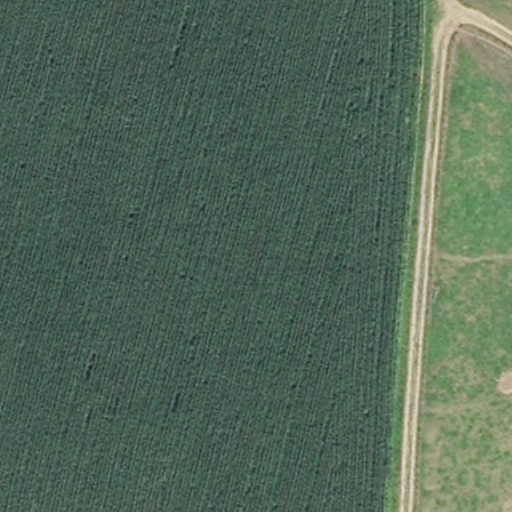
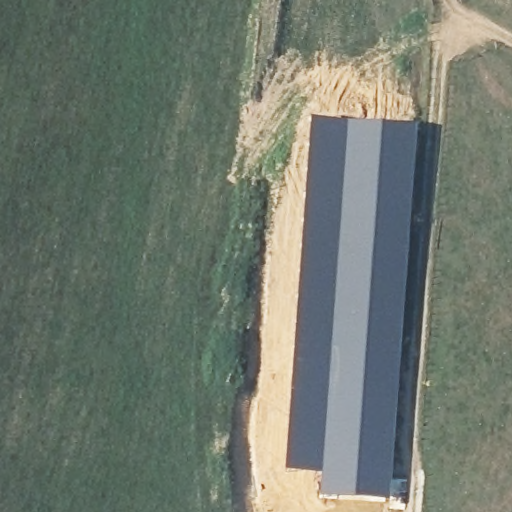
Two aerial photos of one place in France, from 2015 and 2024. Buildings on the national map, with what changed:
new [(309,123),(335,125),(415,128),(406,274),(389,499),(319,494),(320,467),(306,466),(302,455),(302,453),(286,449),(309,123)]

